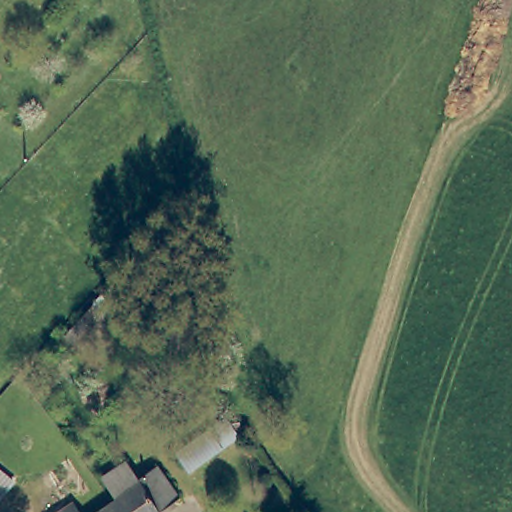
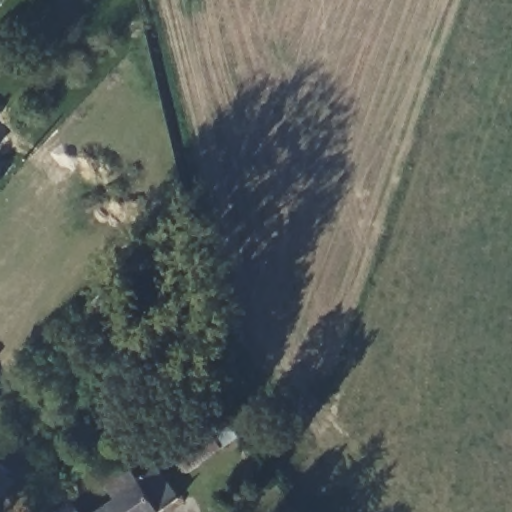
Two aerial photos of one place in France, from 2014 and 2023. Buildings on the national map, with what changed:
unchanged [(107,314),(78,344),(64,331),(93,301),(107,314)]
unchanged [(192,469),(173,449),(220,414),(243,434),(192,469)]
unchanged [(113,505),(118,501),(105,484),(129,467),(140,486),(161,471),(180,499),(161,512),(103,512),(113,505)]
unchanged [(14,479),(0,498),(0,469),(14,479)]
unchanged [(73,500),(81,512),(57,512),(73,500)]

